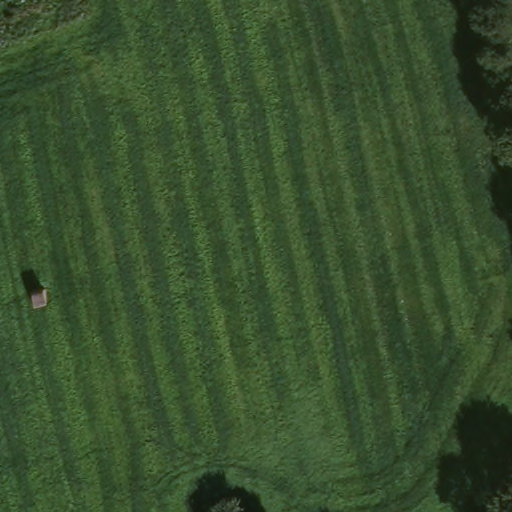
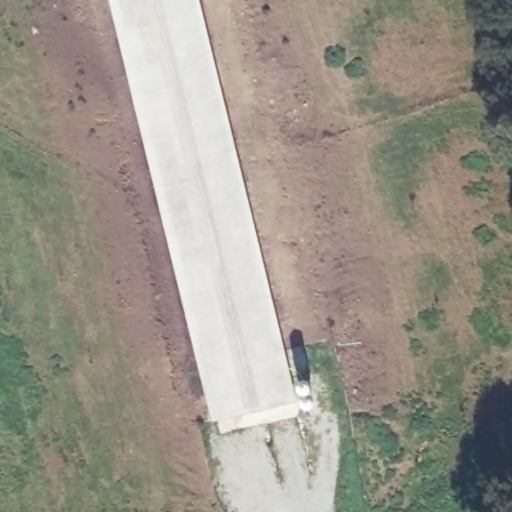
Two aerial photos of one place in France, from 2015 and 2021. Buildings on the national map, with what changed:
new [(200,0),(296,400),(212,421),(110,0),(200,0)]

